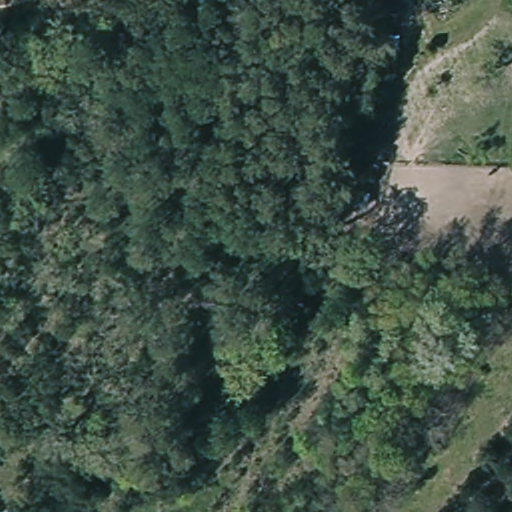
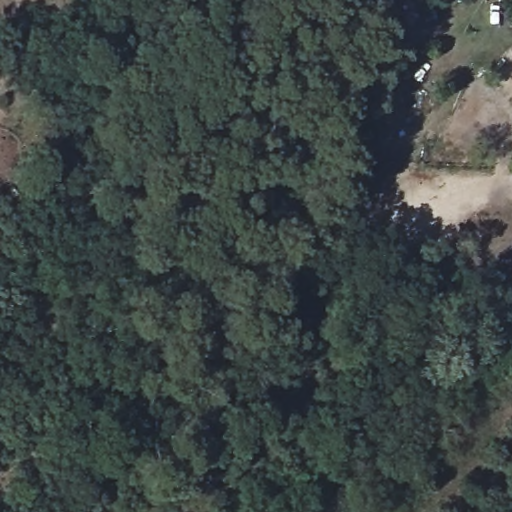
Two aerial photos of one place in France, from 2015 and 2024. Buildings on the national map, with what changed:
unchanged [(369,210),(346,206),(350,187),(372,190),(369,210)]

